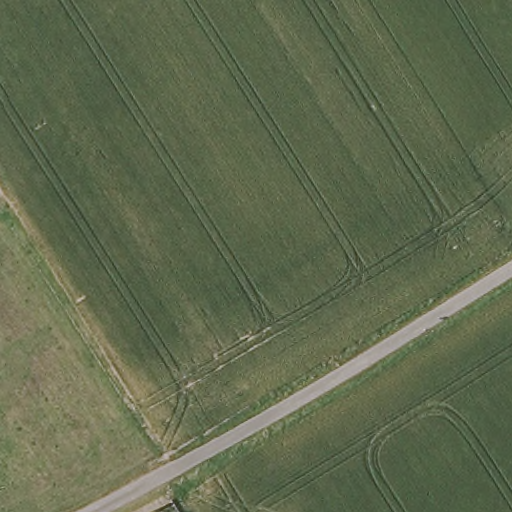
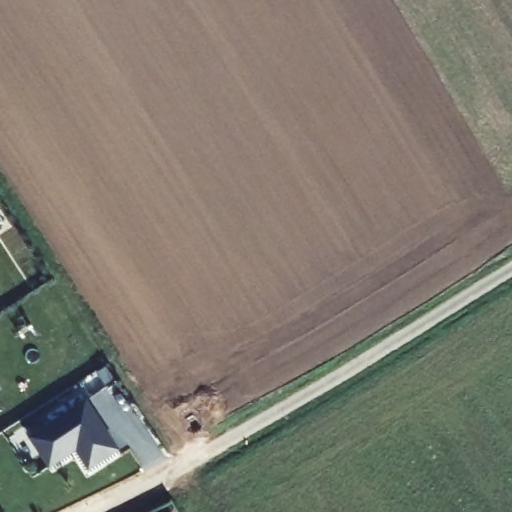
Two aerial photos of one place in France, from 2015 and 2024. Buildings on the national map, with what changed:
new [(28,437),(87,398),(120,448),(89,470),(76,450),(48,468),(28,437)]

